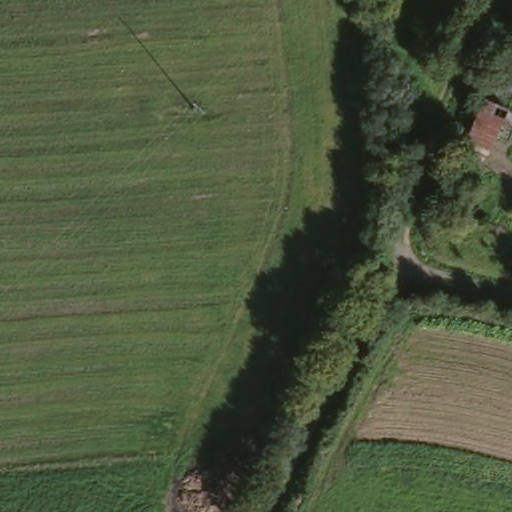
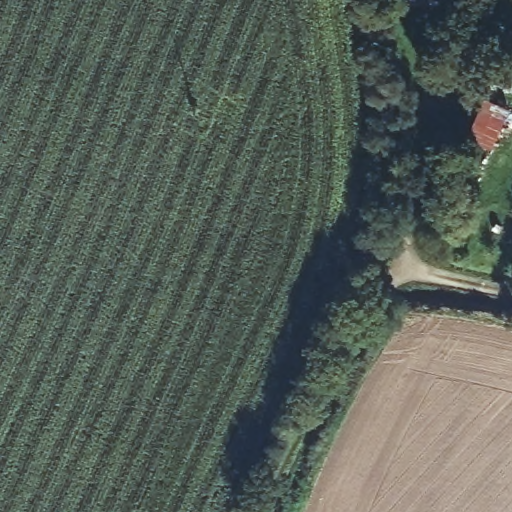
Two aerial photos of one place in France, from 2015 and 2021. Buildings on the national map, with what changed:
unchanged [(496,61),(512,66),(512,94),(488,85),(496,61)]
unchanged [(489,157),(464,149),(479,101),(506,114),(489,157)]

